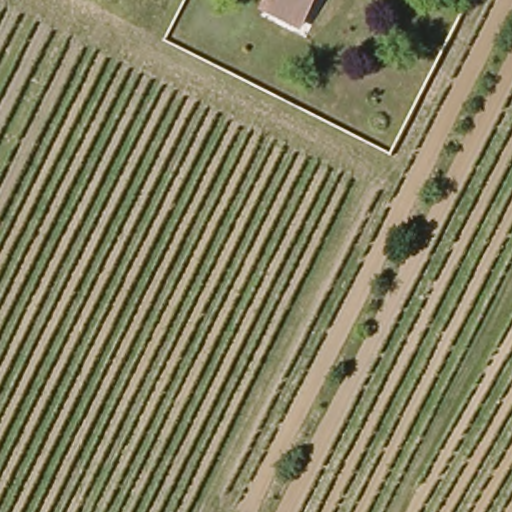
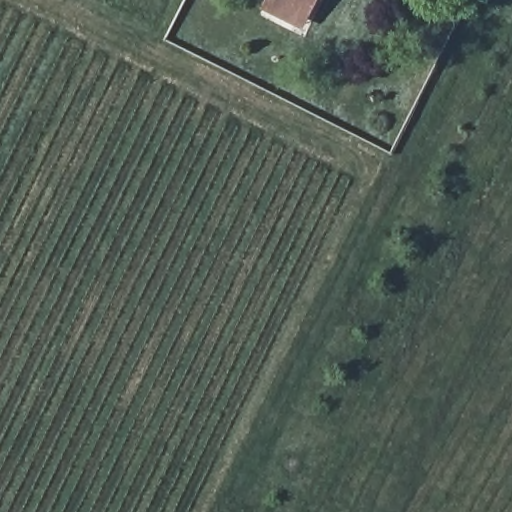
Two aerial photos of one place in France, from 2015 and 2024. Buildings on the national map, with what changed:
unchanged [(293,25),(260,7),(263,0),(306,0),(293,25)]

